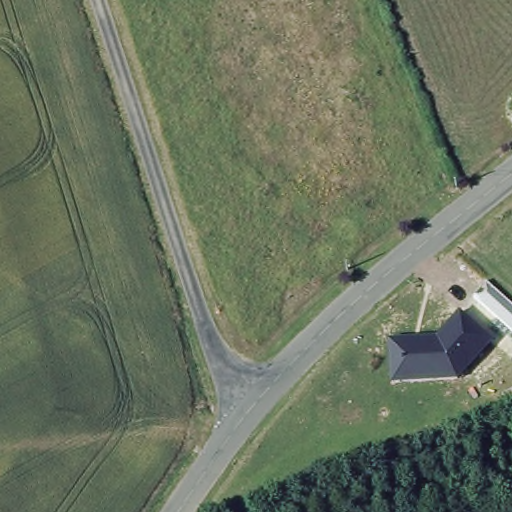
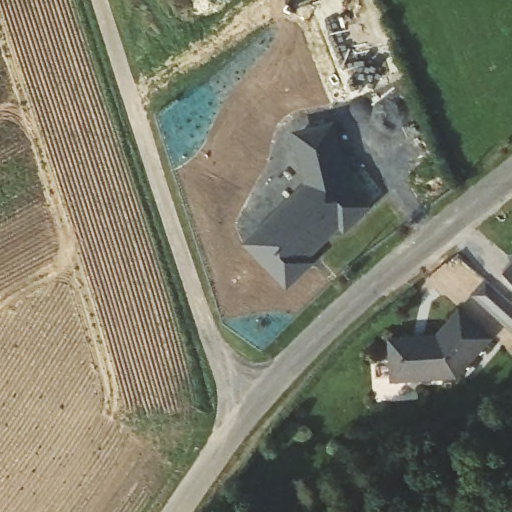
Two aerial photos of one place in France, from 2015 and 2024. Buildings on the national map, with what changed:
new [(291,131),(331,126),(344,183),(372,209),(346,234),(343,230),(289,283),(281,284),(245,248),(304,185),(291,131)]
new [(512,281),(503,273),(512,264),(512,281)]
unchanged [(512,304),(512,331),(474,296),(486,280),(512,304)]
unchanged [(434,335),(458,309),(492,339),(459,378),(391,383),(388,339),(434,335)]

